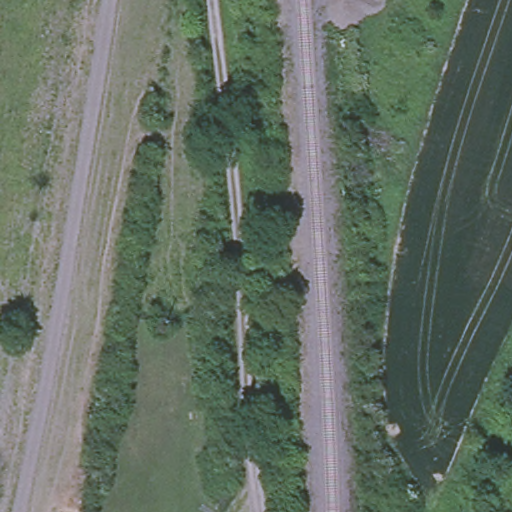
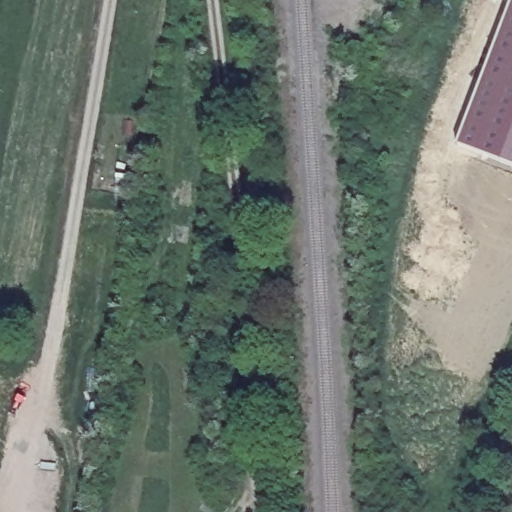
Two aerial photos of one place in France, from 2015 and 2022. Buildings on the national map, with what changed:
new [(453,142),(509,0),(512,0),(512,165),(453,142)]

